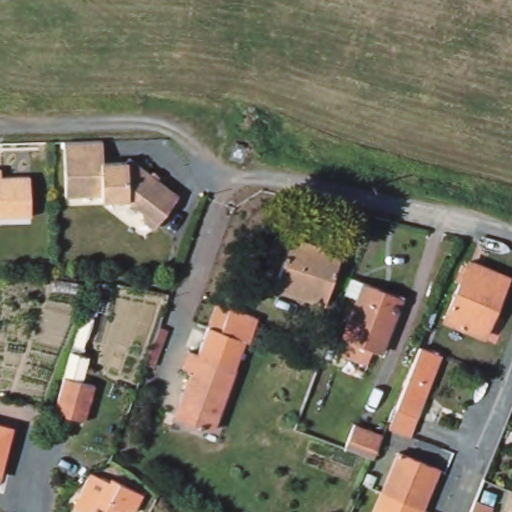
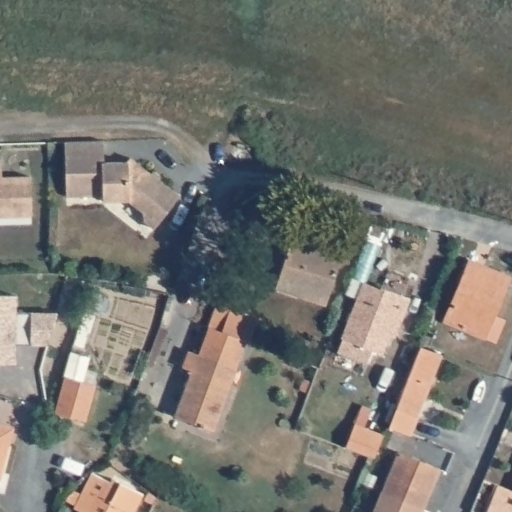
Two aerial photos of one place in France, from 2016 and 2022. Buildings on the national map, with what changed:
unchanged [(101,143),(102,165),(125,165),(127,160),(177,199),(151,231),(142,224),(140,215),(126,204),(101,204),(101,198),(64,199),(63,144),(101,143)]
unchanged [(24,179),(25,219),(0,219),(0,179),(24,179)]
unchanged [(277,276),(291,238),(341,255),(322,305),(298,296),(273,287),(277,276)]
unchanged [(484,336),(445,321),(468,262),(508,279),(484,336)]
unchanged [(347,294),(352,278),(363,283),(381,290),(398,297),(395,306),(375,353),(368,351),(364,363),(334,351),(357,298),(347,294)]
new [(12,296),(12,313),(53,313),(45,345),(27,345),(12,345),(12,364),(4,364),(0,364),(0,296),(12,296)]
unchanged [(172,419),(189,374),(177,370),(184,353),(195,357),(204,332),(212,309),(226,313),(253,323),(245,346),(240,345),(207,432),(172,419)]
unchanged [(440,357),(416,417),(395,409),(419,348),(440,357)]
unchanged [(87,421),(57,412),(67,376),(97,385),(87,421)]
unchanged [(356,425),(381,434),(371,459),(346,450),(356,425)]
unchanged [(6,433),(0,458),(0,431),(6,433)]
unchanged [(399,453),(438,470),(420,511),(380,495),(399,453)]
unchanged [(75,506),(92,474),(107,482),(110,478),(142,496),(135,512),(125,512),(122,511),(122,512),(84,512),(75,506)]
unchanged [(420,512),(372,512),(380,495),(420,511),(420,512)]

